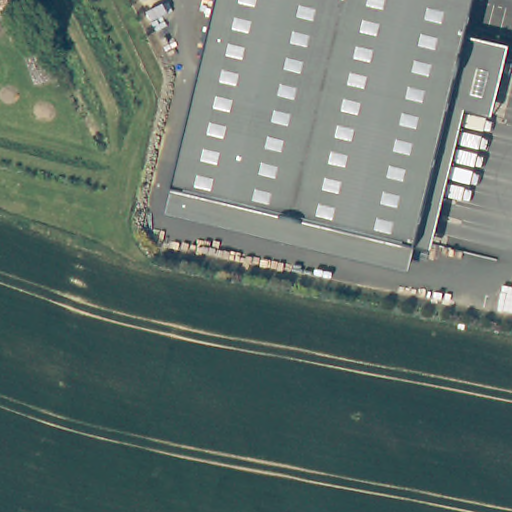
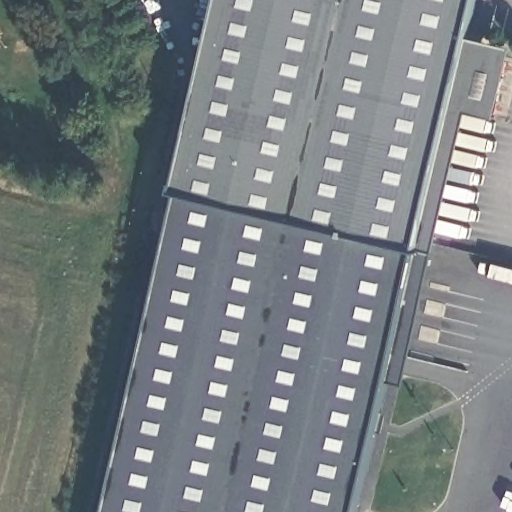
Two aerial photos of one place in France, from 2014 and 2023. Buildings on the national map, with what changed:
unchanged [(465,38),(508,50),(491,119),(465,113),(431,253),(415,250),(409,275),(165,218),(171,191),(218,0),(474,0),(465,38)]
new [(409,275),(415,250),(431,253),(400,384),(385,382),(354,512),(100,512),(165,218),(409,275)]

